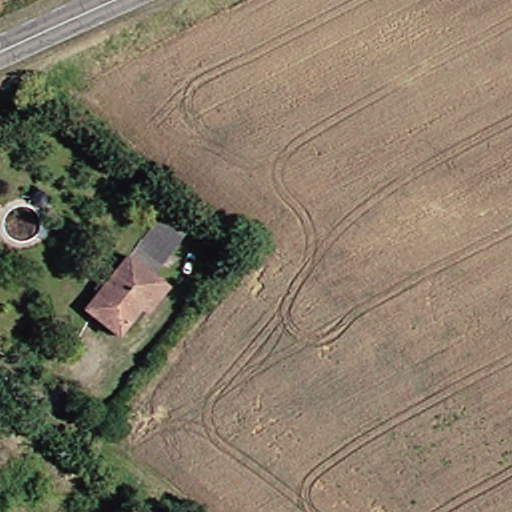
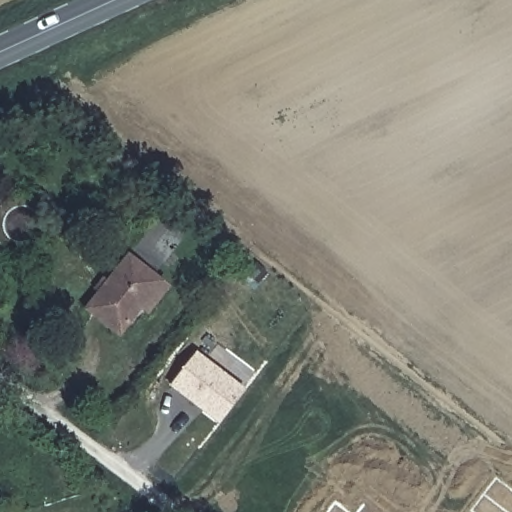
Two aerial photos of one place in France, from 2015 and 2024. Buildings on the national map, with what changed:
unchanged [(135,256),(174,209),(196,226),(156,272),(135,256)]
unchanged [(172,284),(150,311),(146,308),(126,332),(94,306),(135,256),(156,272),(172,284)]
new [(219,425),(170,386),(197,351),(246,389),(219,425)]
new [(496,477),(512,490),(512,512),(473,512),(470,510),(496,477)]
new [(337,500),(351,512),(327,512),(337,500)]
new [(363,503),(374,512),(356,512),(363,503)]

